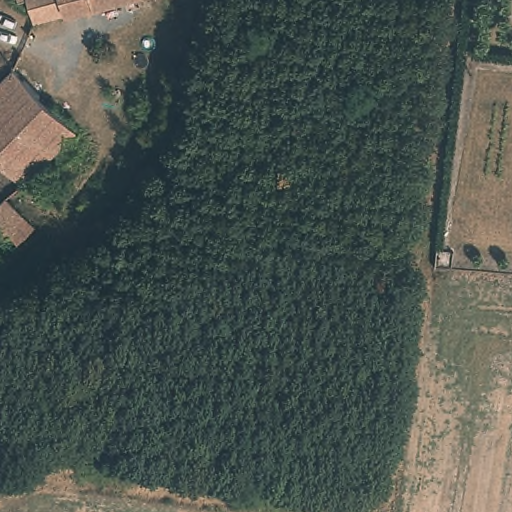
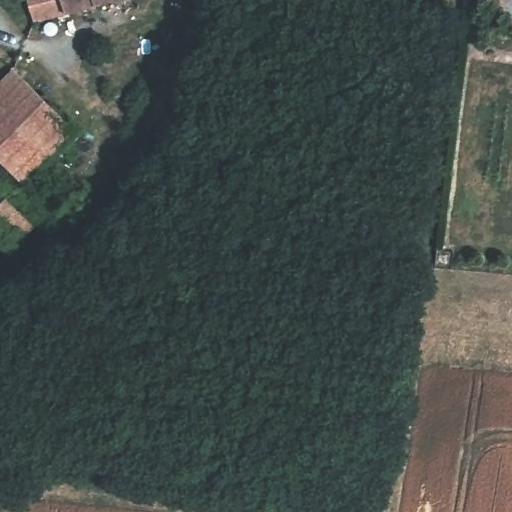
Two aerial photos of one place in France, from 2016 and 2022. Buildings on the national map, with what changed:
unchanged [(19,2),(18,0),(26,0),(19,2)]
unchanged [(34,22),(28,0),(117,0),(34,22)]
unchanged [(22,185),(0,162),(0,83),(14,70),(76,132),(22,185)]
unchanged [(17,245),(9,236),(4,240),(0,236),(0,203),(5,199),(35,229),(17,245)]

